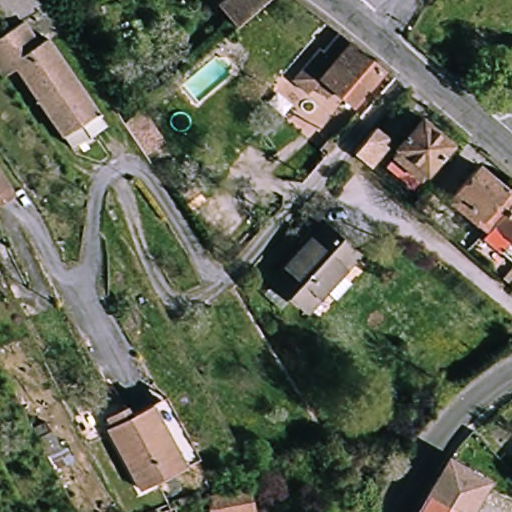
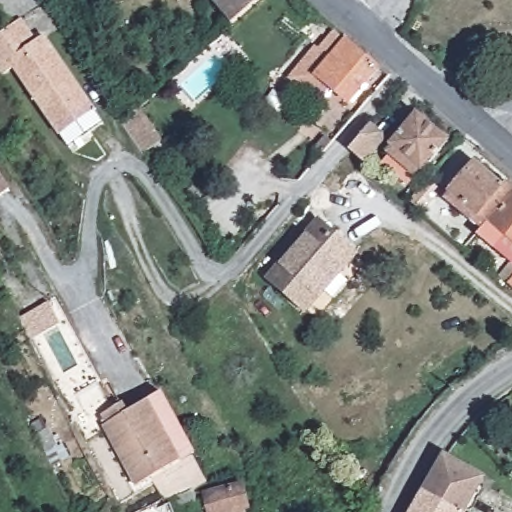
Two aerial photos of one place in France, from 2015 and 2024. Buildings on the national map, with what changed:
unchanged [(5,31),(0,24),(0,0),(37,0),(42,6),(5,31)]
unchanged [(259,0),(235,22),(212,0),(259,0)]
unchanged [(320,80),(310,92),(297,83),(332,33),(379,65),(347,106),(320,80)]
unchanged [(0,46),(12,37),(26,52),(35,45),(77,97),(92,118),(77,131),(57,147),(10,88),(0,96),(0,46)]
unchanged [(505,94),(512,77),(512,95),(505,94)]
unchanged [(373,122),(385,134),(362,165),(349,150),(373,122)]
unchanged [(167,160),(155,169),(129,134),(130,134),(141,124),(167,160)]
unchanged [(418,126),(444,148),(425,173),(399,150),(418,126)]
unchanged [(490,190),(495,185),(508,195),(483,225),(474,237),(445,212),(456,201),(449,195),(468,172),(490,190)]
unchanged [(0,175),(10,194),(0,198),(0,175)]
unchanged [(413,206),(427,187),(439,197),(425,216),(413,206)]
unchanged [(508,195),(512,198),(512,237),(507,245),(483,225),(508,195)]
unchanged [(306,312),(273,283),(318,226),(350,253),(306,312)]
unchanged [(497,268),(512,250),(512,280),(510,278),(497,268)]
unchanged [(135,488),(96,418),(124,402),(129,411),(152,401),(182,461),(135,488)]
unchanged [(426,487),(447,452),(485,476),(465,511),(426,487)]
unchanged [(247,485),(250,512),(204,512),(202,492),(247,485)]
unchanged [(464,512),(411,512),(426,487),(465,511),(464,512)]

